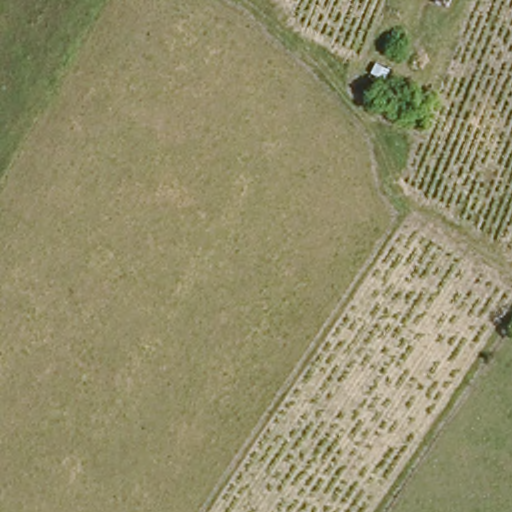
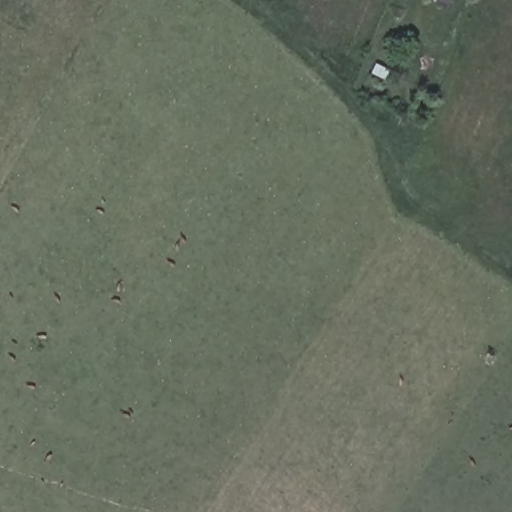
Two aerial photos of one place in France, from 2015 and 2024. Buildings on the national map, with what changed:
[]

